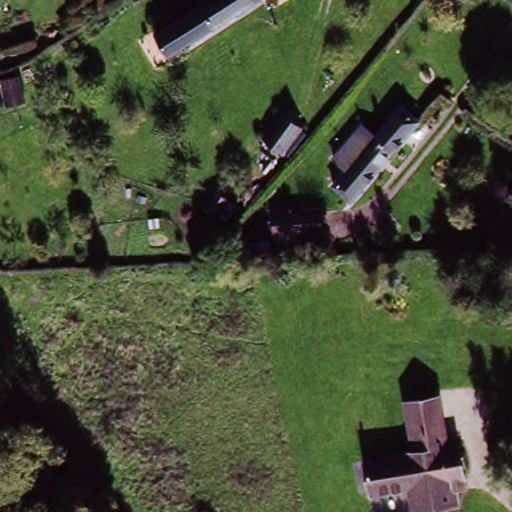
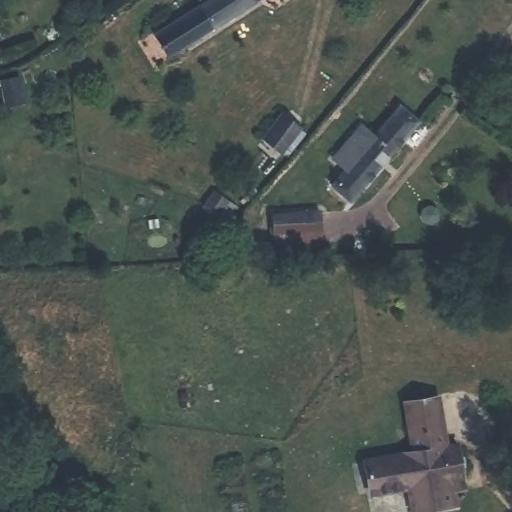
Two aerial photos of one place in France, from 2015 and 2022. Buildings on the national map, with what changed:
unchanged [(213,26),(168,55),(154,31),(198,1),(200,0),(253,0),(213,26)]
unchanged [(361,120),(374,133),(399,107),(421,125),(351,208),(327,192),(339,174),(328,158),(361,120)]
unchanged [(283,112),(310,124),(276,170),(251,152),(283,112)]
unchanged [(328,251),(234,255),(233,238),(274,236),(274,211),(327,209),(328,251)]
unchanged [(449,440),(462,439),(467,483),(457,484),(459,505),(412,511),(408,491),(371,496),(364,456),(409,449),(404,398),(442,393),(449,440)]

